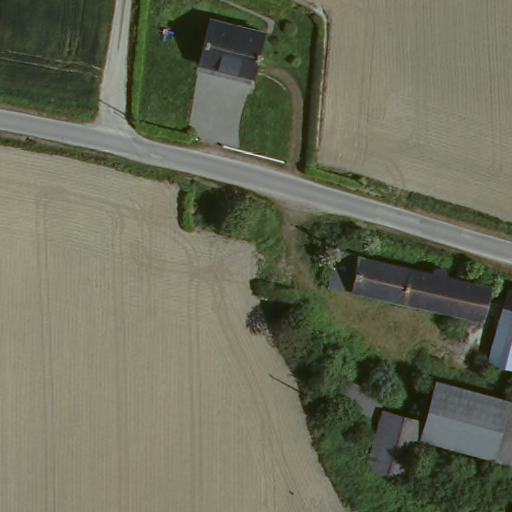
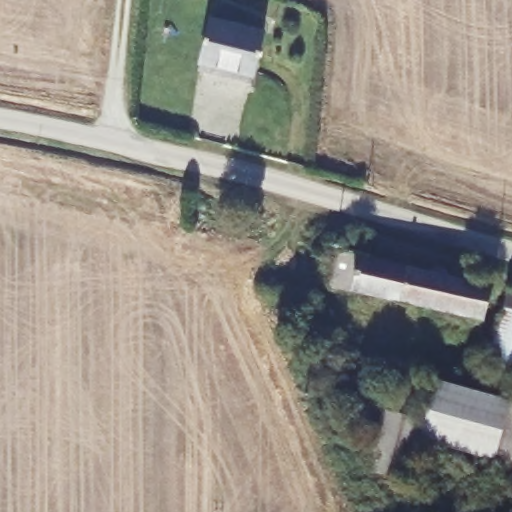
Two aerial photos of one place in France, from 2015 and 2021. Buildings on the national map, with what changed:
unchanged [(265,41),(251,85),(195,67),(209,23),(265,41)]
unchanged [(327,284),(335,247),(357,252),(489,282),(482,318),(350,289),(327,284)]
unchanged [(500,380),(483,377),(500,285),(512,288),(512,372),(501,370),(500,380)]
unchanged [(326,405),(339,366),(353,371),(350,382),(379,393),(370,421),(326,405)]
unchanged [(411,484),(369,479),(377,418),(421,423),(428,387),(512,404),(512,466),(417,447),(411,484)]

